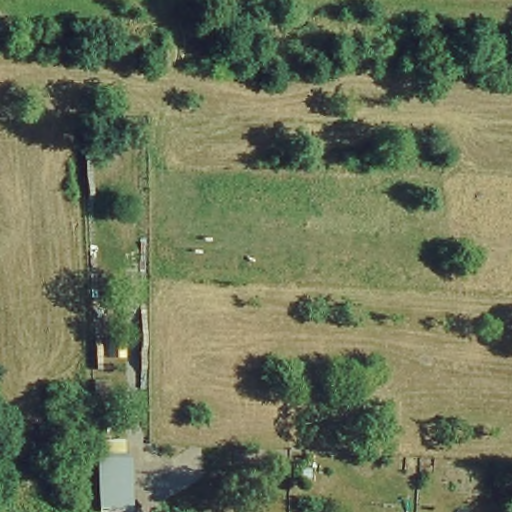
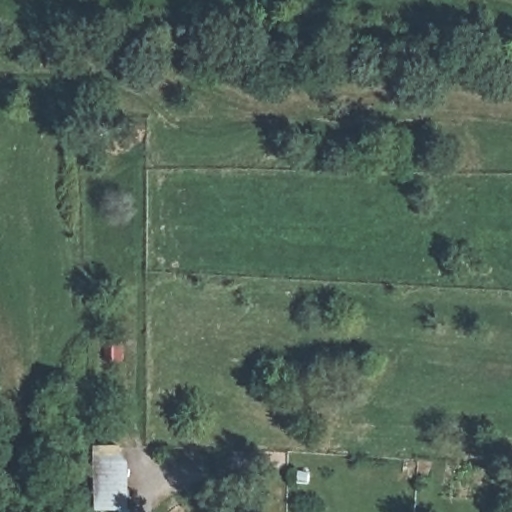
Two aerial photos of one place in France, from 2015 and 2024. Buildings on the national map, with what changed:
unchanged [(123,339),(123,356),(108,356),(108,339),(123,339)]
unchanged [(102,512),(100,465),(135,463),(136,512),(102,512)]
unchanged [(299,481),(299,470),(308,470),(308,482),(299,481)]

